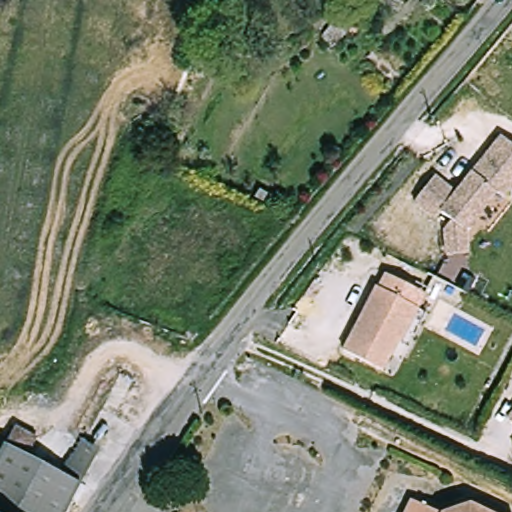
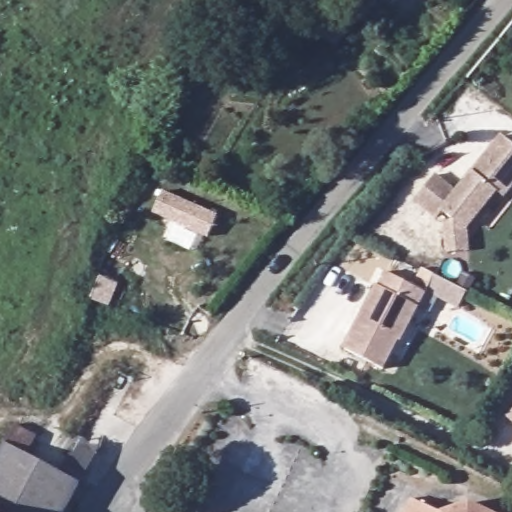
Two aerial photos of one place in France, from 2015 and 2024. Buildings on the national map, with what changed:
unchanged [(354,5),(339,25),(328,17),(340,0),(347,0),(354,5)]
unchanged [(448,229),(456,219),(445,210),(440,217),(417,200),(437,174),(459,191),(475,170),(480,162),(502,134),(512,141),(512,185),(506,194),(499,189),(468,229),(471,250),(452,252),(448,229)]
new [(163,190),(218,215),(209,235),(154,211),(163,190)]
unchanged [(386,369),(345,351),(374,285),(377,286),(384,270),(424,288),(417,305),(402,339),(400,338),(386,369)]
unchanged [(512,410),(512,425),(505,417),(512,410)]
unchanged [(58,473),(78,435),(101,447),(65,512),(0,512),(0,453),(6,443),(58,473)]
unchanged [(512,445),(512,450),(510,447),(512,445)]
unchanged [(405,512),(411,499),(437,512),(405,512)]
unchanged [(499,512),(448,512),(475,500),(499,512)]

